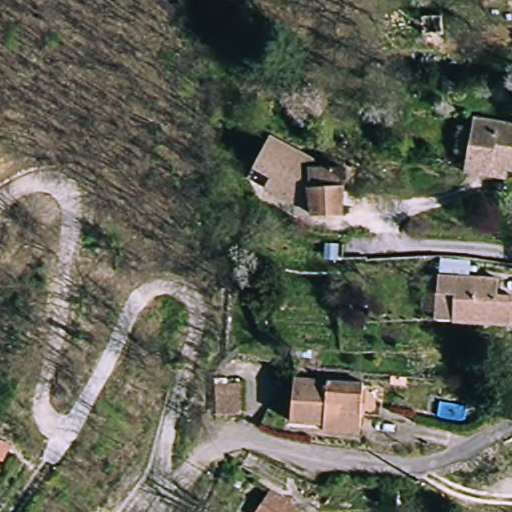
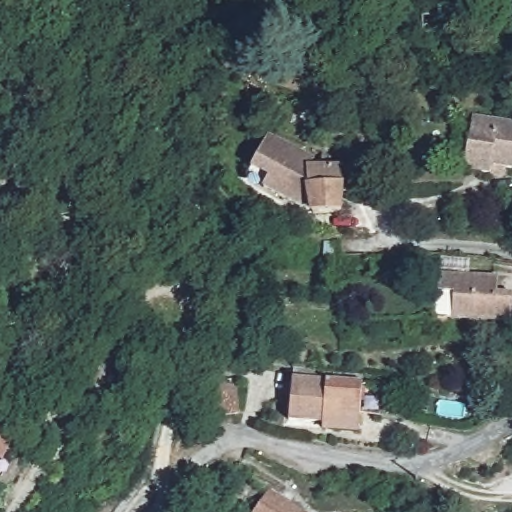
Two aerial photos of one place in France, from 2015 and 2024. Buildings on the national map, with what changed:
unchanged [(494,178),(469,177),(469,121),(512,121),(512,165),(512,164),(511,178),(494,178)]
unchanged [(351,217),(311,217),(311,212),(265,190),(270,179),(253,172),(276,130),(322,151),(319,167),(350,167),(351,217)]
unchanged [(436,293),(437,273),(499,278),(498,293),(512,295),(512,327),(461,323),(433,321),(436,293)]
unchanged [(336,431),(324,431),(324,423),(291,424),(289,379),(359,379),(359,413),(359,431),(336,431)]
unchanged [(216,417),(214,385),(243,384),(244,416),(216,417)]
unchanged [(0,450),(0,438),(5,440),(0,450)]
unchanged [(302,512),(256,512),(269,491),(302,512)]

